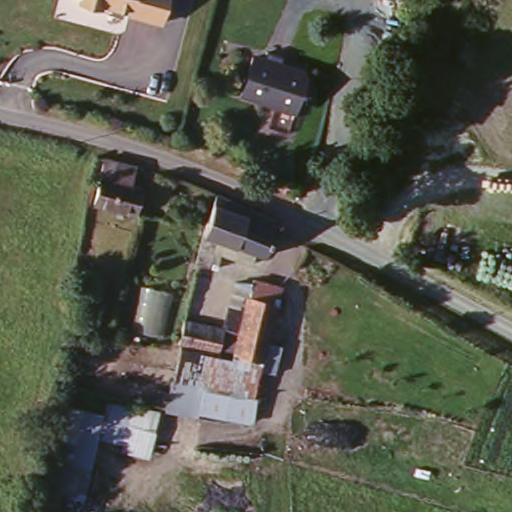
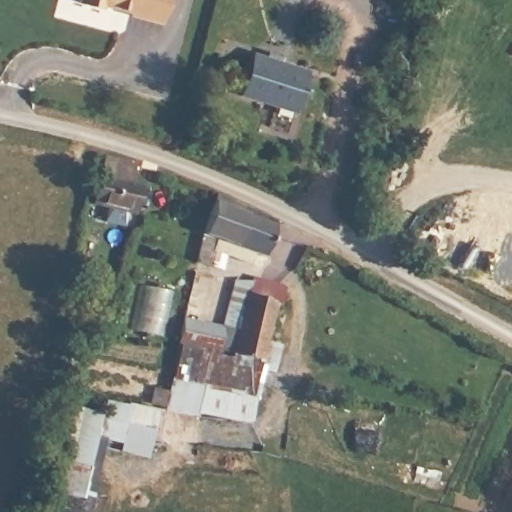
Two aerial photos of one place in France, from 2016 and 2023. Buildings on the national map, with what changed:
unchanged [(173,0),(167,22),(135,13),(135,11),(108,4),(107,8),(85,2),(85,0),(173,0)]
unchanged [(255,57),(308,74),(296,109),(244,91),(255,57)]
unchanged [(133,162),(128,181),(139,184),(133,210),(92,200),(102,156),(133,162)]
unchanged [(261,257),(212,241),(207,268),(189,265),(198,229),(213,197),(273,222),(261,257)]
unchanged [(182,297),(195,300),(190,325),(219,330),(230,282),(247,286),(248,282),(278,287),(274,306),(271,305),(257,362),(174,347),(182,297)]
unchanged [(174,347),(257,362),(247,422),(167,407),(162,407),(174,347)]
unchanged [(146,391),(158,392),(156,407),(143,406),(146,391)]
unchanged [(101,416),(107,404),(157,416),(147,463),(118,456),(121,447),(97,446),(79,502),(48,502),(64,408),(101,416)]

